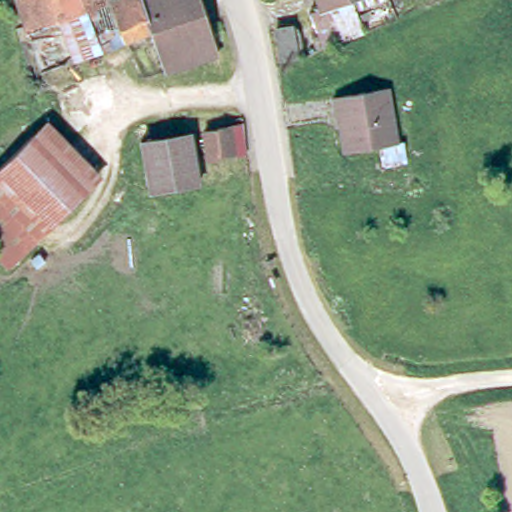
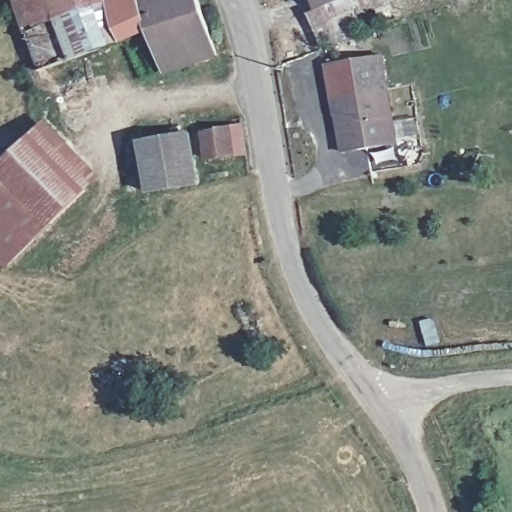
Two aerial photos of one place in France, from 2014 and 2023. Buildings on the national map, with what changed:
unchanged [(111,0),(198,0),(216,54),(164,71),(150,29),(39,70),(16,0),(108,0),(108,1),(111,0)]
unchanged [(385,0),(355,11),(362,32),(323,47),(309,9),(317,5),(332,0),(385,0)]
unchanged [(315,0),(332,0),(317,5),(315,0)]
unchanged [(286,25),(295,55),(277,62),(267,31),(286,25)]
new [(327,64),(380,55),(385,88),(332,97),(327,64)]
unchanged [(385,88),(396,143),(342,151),(339,130),(343,130),(340,115),(334,115),(332,97),(385,88)]
unchanged [(207,153),(203,126),(230,121),(242,120),(246,144),(234,145),(235,149),(207,153)]
unchanged [(0,260),(0,164),(43,121),(98,176),(6,266),(0,260)]
unchanged [(190,129),(198,180),(147,187),(140,136),(190,129)]

